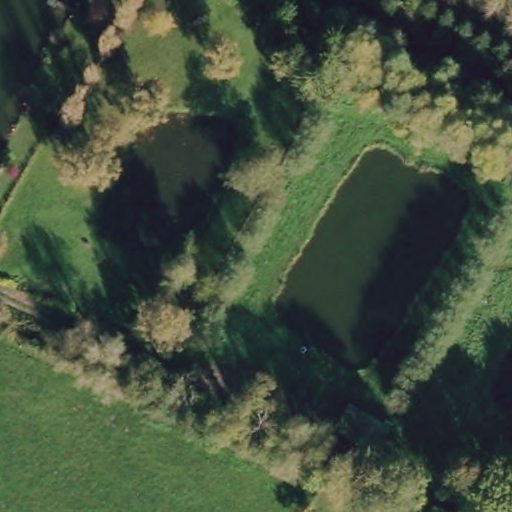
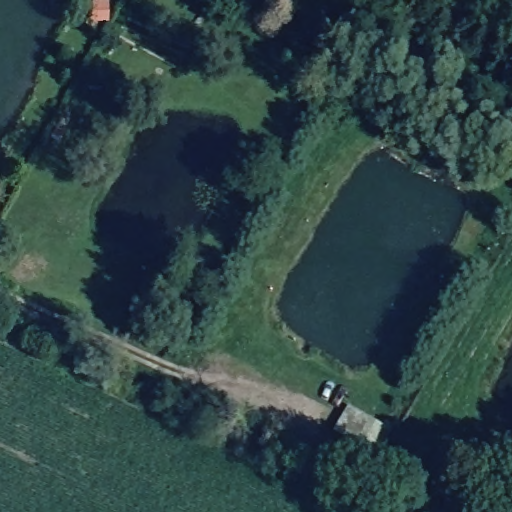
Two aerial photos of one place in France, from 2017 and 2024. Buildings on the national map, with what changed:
unchanged [(349,402),(398,426),(386,453),(334,429),(349,402)]

